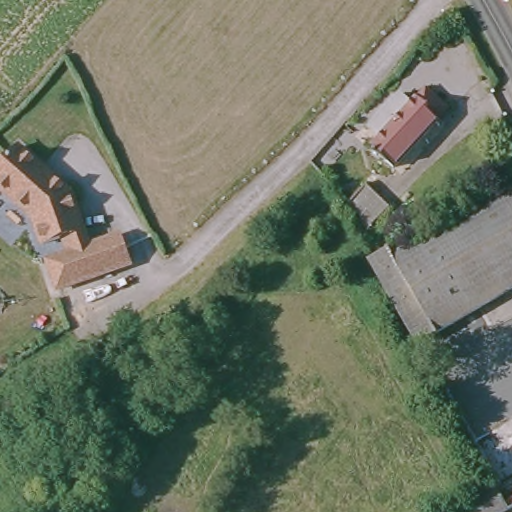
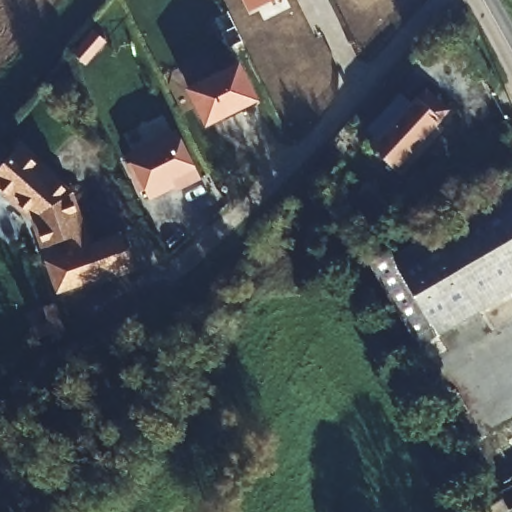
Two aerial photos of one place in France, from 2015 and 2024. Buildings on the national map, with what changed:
new [(250,12),(243,0),(273,0),(250,12)]
new [(185,89),(239,62),(259,101),(205,129),(185,89)]
unchanged [(442,114),(392,179),(371,159),(380,148),(369,139),(395,104),(407,112),(420,95),(442,114)]
new [(202,179),(177,191),(175,189),(150,200),(127,152),(175,130),(202,179)]
unchanged [(109,273),(67,288),(57,260),(76,253),(70,236),(52,244),(42,216),(19,196),(0,180),(0,178),(9,169),(28,146),(79,191),(99,245),(129,234),(139,262),(109,273)]
unchanged [(512,184),(512,281),(410,338),(379,284),(366,263),(512,184)]
unchanged [(402,210),(384,235),(362,216),(380,191),(402,210)]
unchanged [(512,493),(512,502),(494,512),(441,512),(497,479),(504,476),(512,493)]

